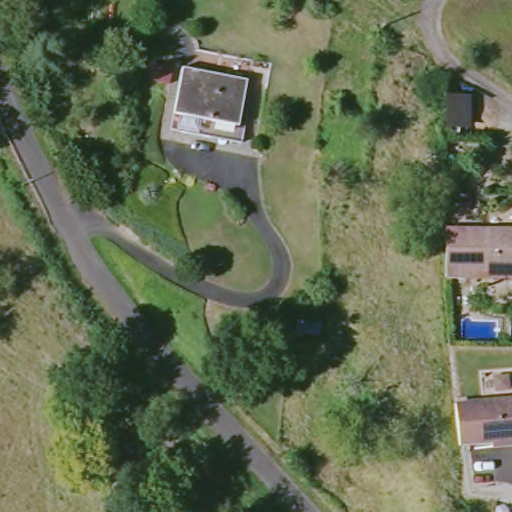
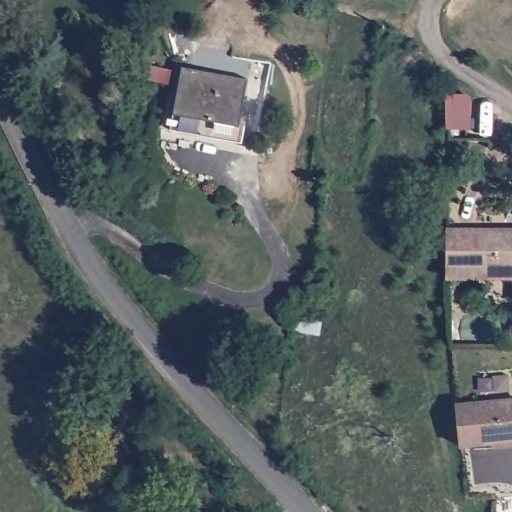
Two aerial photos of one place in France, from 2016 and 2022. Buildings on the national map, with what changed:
unchanged [(231,121),(237,123),(235,140),(165,130),(172,65),(237,75),(231,121)]
unchanged [(437,86),(470,86),(467,124),(434,124),(437,86)]
unchanged [(444,275),(441,279),(442,228),(512,230),(512,273),(476,272),(476,277),(444,275)]
unchanged [(453,400),(512,397),(512,439),(457,442),(453,400)]

